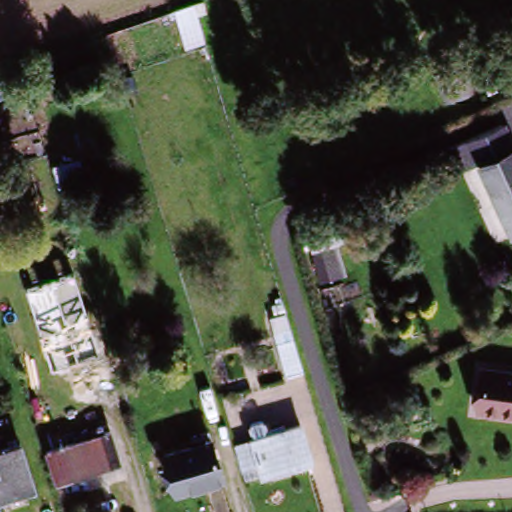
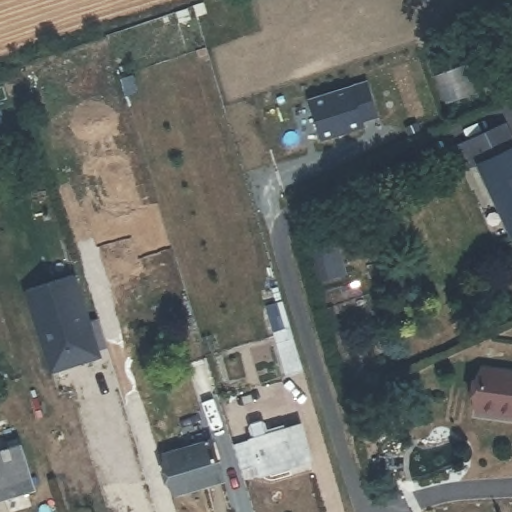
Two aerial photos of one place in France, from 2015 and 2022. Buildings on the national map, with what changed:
new [(367,87),(386,125),(314,146),(303,105),(367,87)]
unchanged [(470,169),(460,144),(507,123),(512,134),(512,228),(483,163),(470,169)]
new [(105,365),(51,378),(27,292),(79,277),(105,365)]
unchanged [(288,375),(278,342),(275,330),(292,325),(296,336),(306,370),(288,375)]
unchanged [(512,372),(512,416),(482,411),(489,368),(512,372)]
unchanged [(311,457),(267,470),(263,459),(240,467),(235,449),(255,443),(250,428),(265,423),(267,433),(285,428),(287,433),(302,429),(311,457)]
demolished [(103,432),(112,461),(52,481),(42,452),(103,432)]
unchanged [(175,492),(166,457),(211,445),(220,480),(175,492)]
unchanged [(20,449),(33,491),(0,502),(0,455),(20,449)]

